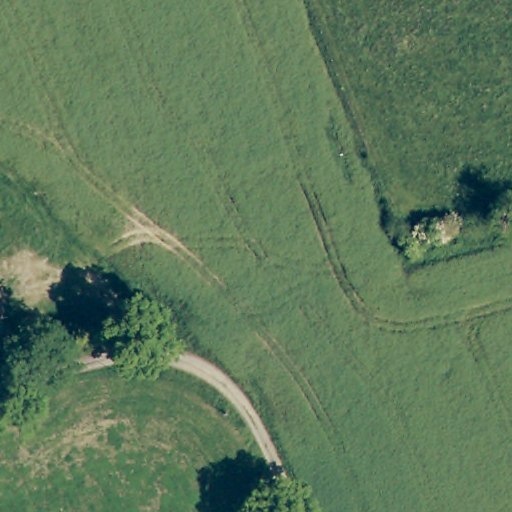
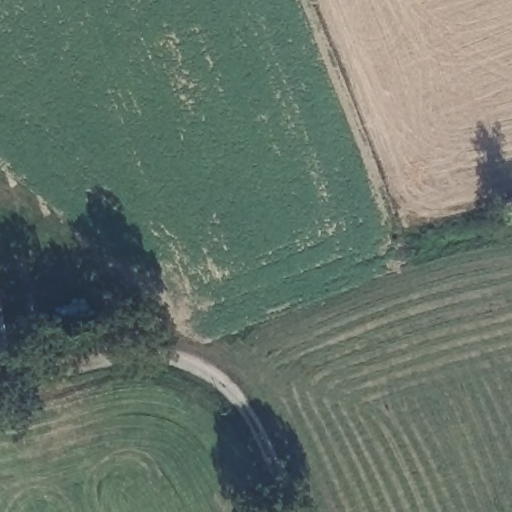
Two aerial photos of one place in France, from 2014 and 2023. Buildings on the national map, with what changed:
unchanged [(16,354),(0,358),(0,291),(16,354)]

